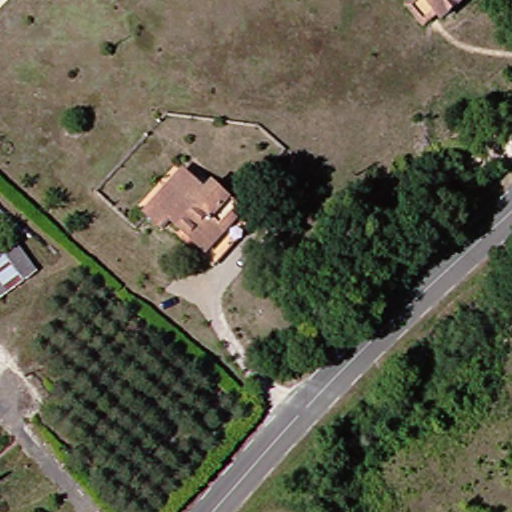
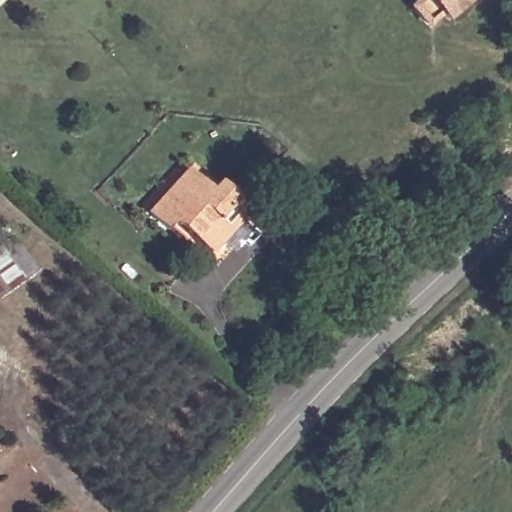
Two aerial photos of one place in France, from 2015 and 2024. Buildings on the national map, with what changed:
unchanged [(431,25),(430,26),(430,24),(430,14),(431,0),(472,0),(455,19),(446,10),(436,20),(431,25)]
unchanged [(230,265),(216,253),(180,221),(170,230),(152,214),(194,171),(214,189),(220,182),(247,206),(240,215),(246,221),(259,233),(230,265)]
unchanged [(0,295),(0,250),(14,240),(37,271),(1,297),(0,295)]

